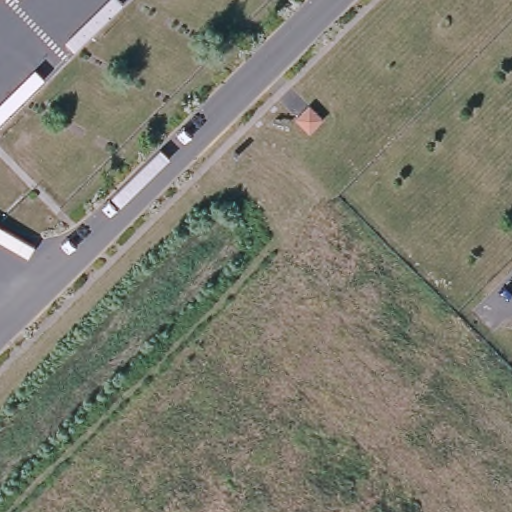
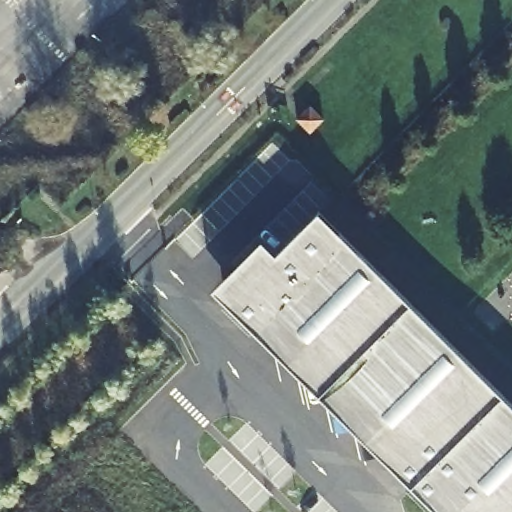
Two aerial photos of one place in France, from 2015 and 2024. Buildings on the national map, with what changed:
unchanged [(310,107),(323,120),(310,133),(297,120),(310,107)]
new [(319,210),(512,404),(512,512),(437,512),(213,288),(262,239),(277,253),(319,210)]

